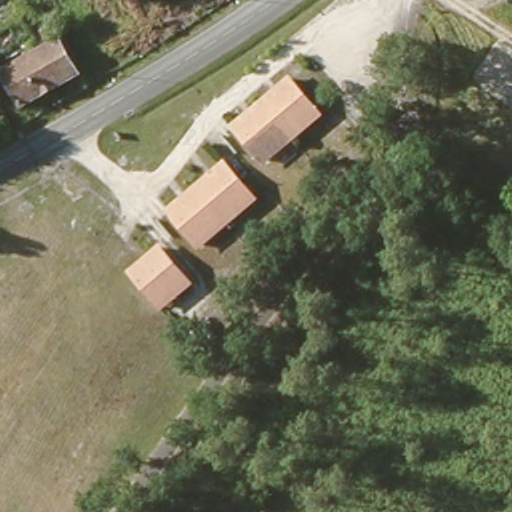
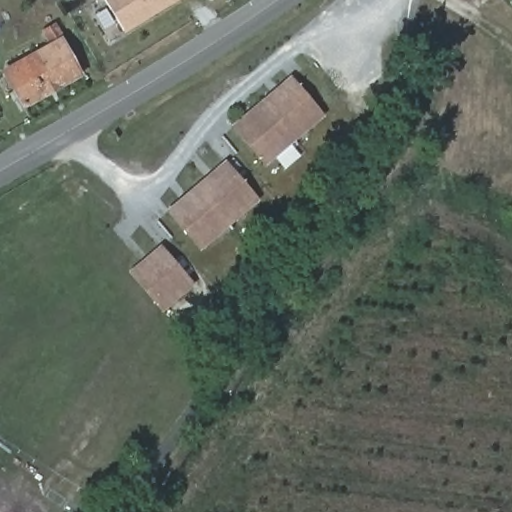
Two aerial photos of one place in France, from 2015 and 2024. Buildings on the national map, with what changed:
new [(110,0),(174,0),(127,29),(110,0)]
unchanged [(28,107),(8,75),(52,49),(44,33),(56,24),(65,40),(63,43),(81,76),(28,107)]
unchanged [(322,114),(264,160),(236,126),(249,115),(279,91),(293,79),(322,114)]
unchanged [(257,199),(200,246),(172,211),(183,201),(214,175),(228,164),(257,199)]
unchanged [(192,284),(163,307),(137,276),(135,272),(151,259),(162,249),(192,284)]

